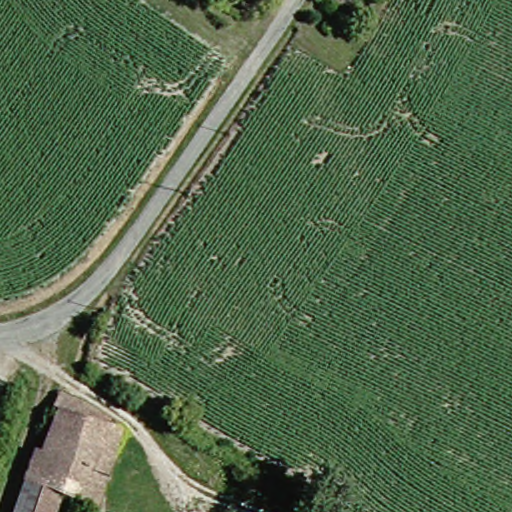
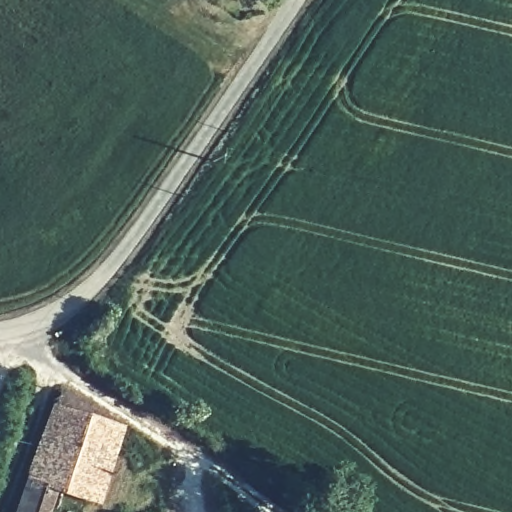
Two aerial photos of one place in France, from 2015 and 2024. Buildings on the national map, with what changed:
unchanged [(87,512),(77,512),(74,511),(100,441),(54,416),(47,413),(51,399),(116,434),(87,512)]
unchanged [(45,512),(7,512),(28,454),(36,458),(54,416),(100,441),(74,511),(49,502),(45,512)]

